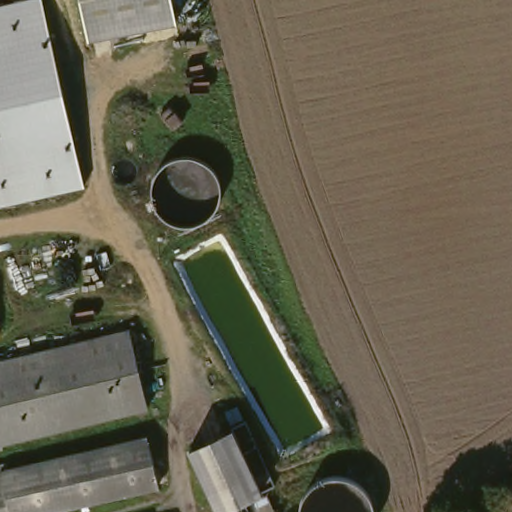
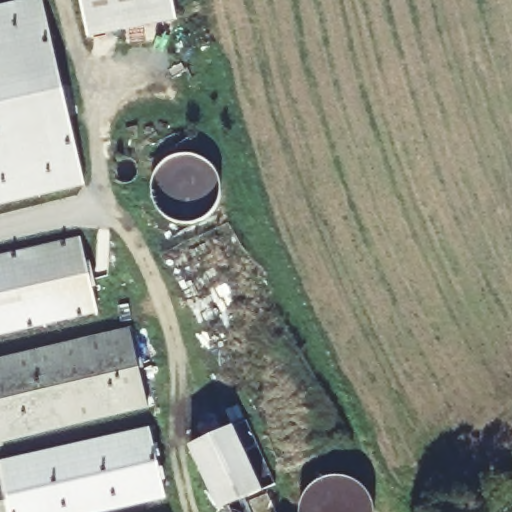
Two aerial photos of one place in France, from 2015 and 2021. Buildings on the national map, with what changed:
unchanged [(21,0),(42,0),(86,184),(0,204),(0,5),(21,0)]
unchanged [(95,35),(87,0),(179,0),(183,15),(95,35)]
new [(80,237),(96,314),(0,332),(0,253),(80,237)]
unchanged [(144,324),(162,404),(0,440),(0,357),(144,324)]
unchanged [(192,438),(231,423),(260,493),(220,509),(192,438)]
unchanged [(5,456),(7,464),(156,432),(168,481),(30,512),(0,512),(0,457),(5,456)]
unchanged [(252,501),(271,494),(278,512),(257,512),(252,501)]

